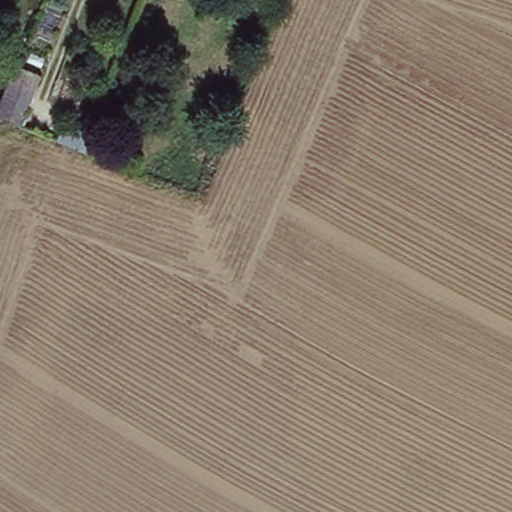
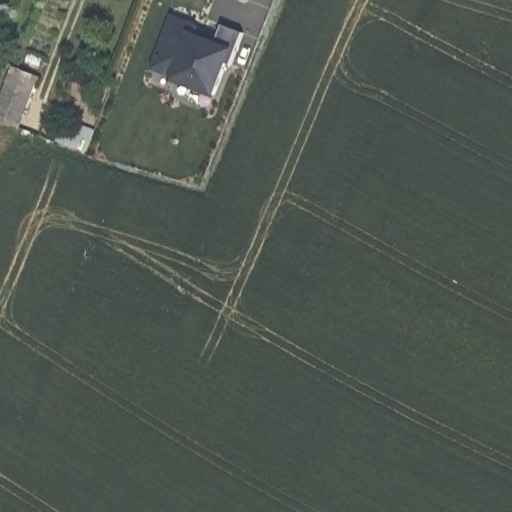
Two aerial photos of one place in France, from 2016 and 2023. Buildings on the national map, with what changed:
new [(155,61),(151,60),(169,15),(205,29),(202,34),(217,40),(223,26),(245,35),(237,52),(217,99),(172,83),(175,78),(153,71),(155,61)]
unchanged [(39,80),(19,131),(0,123),(0,96),(10,70),(39,80)]

